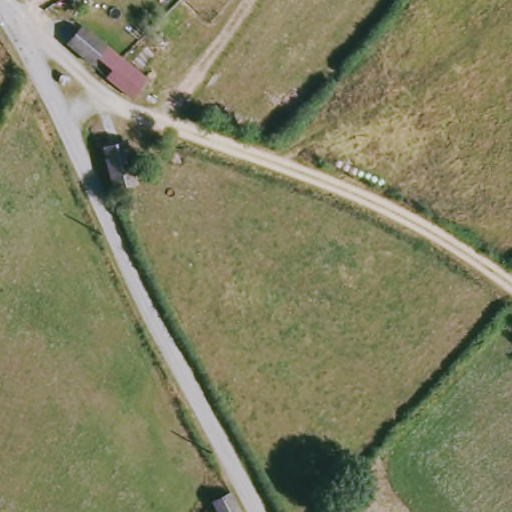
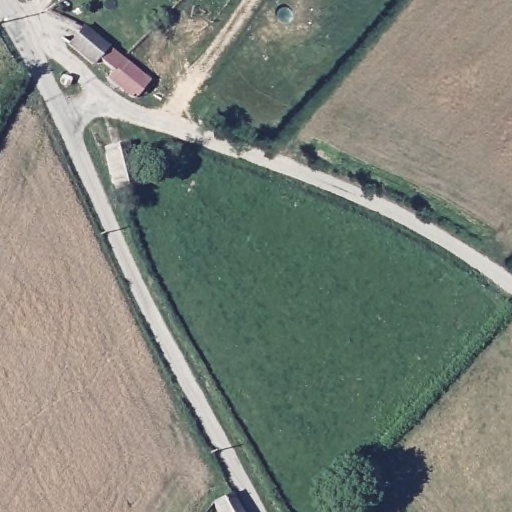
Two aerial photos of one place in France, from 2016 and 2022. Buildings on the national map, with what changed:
unchanged [(133,93),(118,81),(122,76),(106,62),(102,66),(82,48),(94,33),(112,40),(119,46),(136,61),(186,106),(144,85),(133,93)]
unchanged [(112,157),(133,150),(149,189),(129,198),(112,157)]
unchanged [(244,512),(220,512),(217,506),(236,497),(244,512)]

